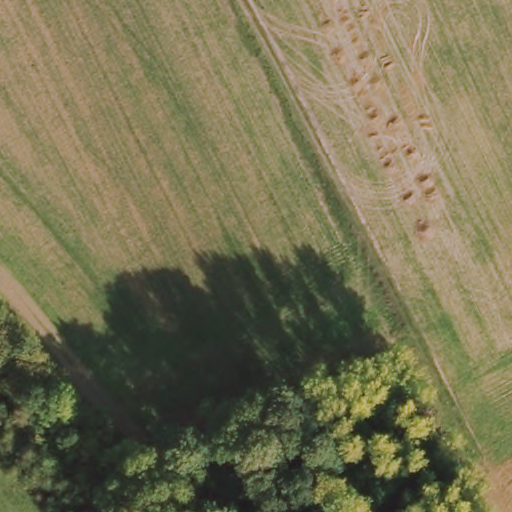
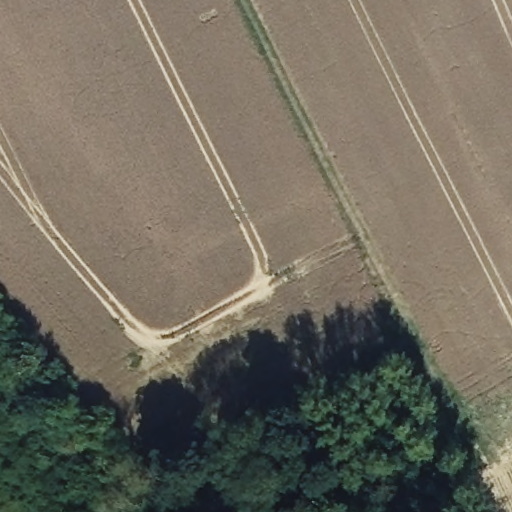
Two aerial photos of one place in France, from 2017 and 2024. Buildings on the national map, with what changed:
unchanged [(163,512),(148,512),(148,511),(159,505),(163,512)]

